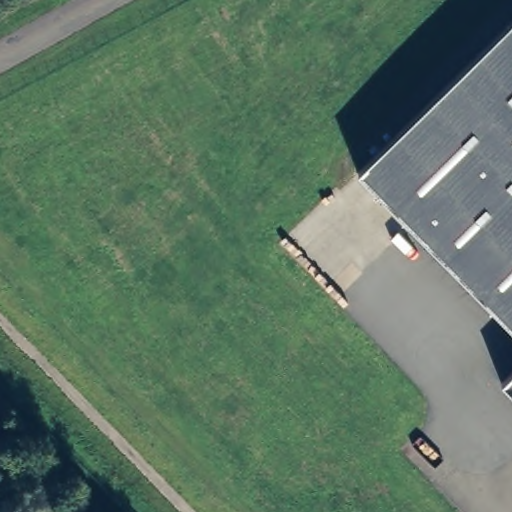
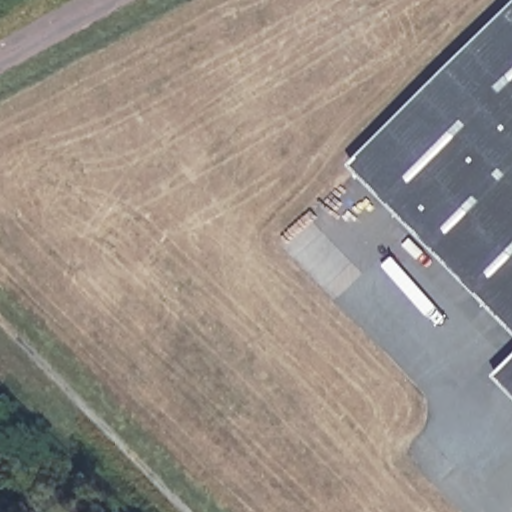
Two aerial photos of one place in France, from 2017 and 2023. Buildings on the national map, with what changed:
unchanged [(359,173),(512,21),(512,327),(359,173)]
unchanged [(503,383),(512,373),(512,392),(503,383)]

